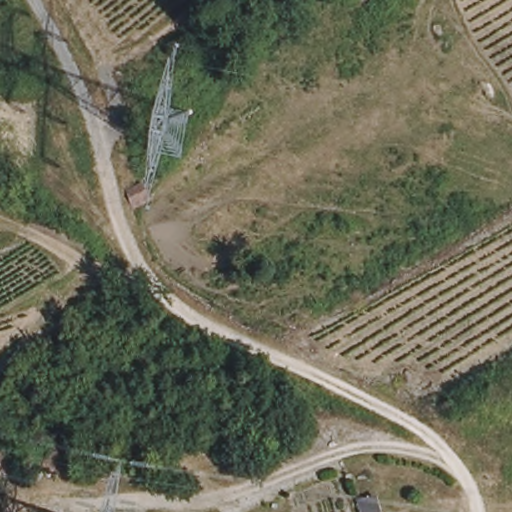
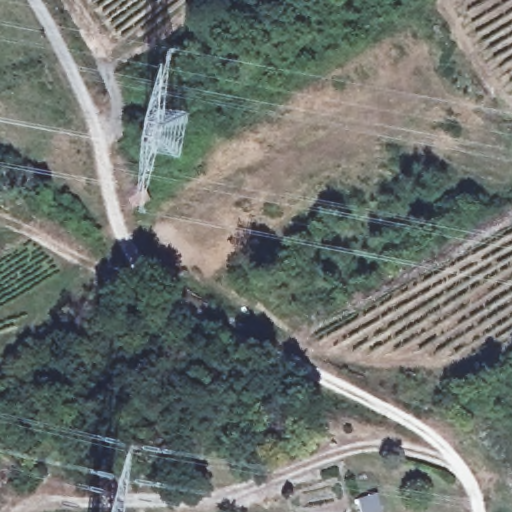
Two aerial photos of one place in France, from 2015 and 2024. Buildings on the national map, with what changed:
unchanged [(125,185),(142,179),(148,195),(130,199),(125,185)]
unchanged [(360,497),(375,494),(380,511),(375,512),(364,512),(360,497)]

